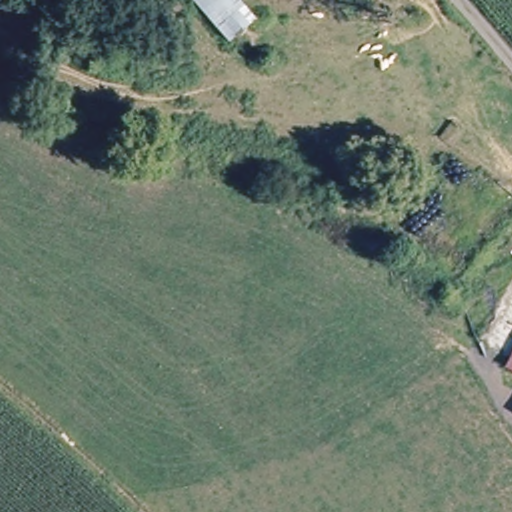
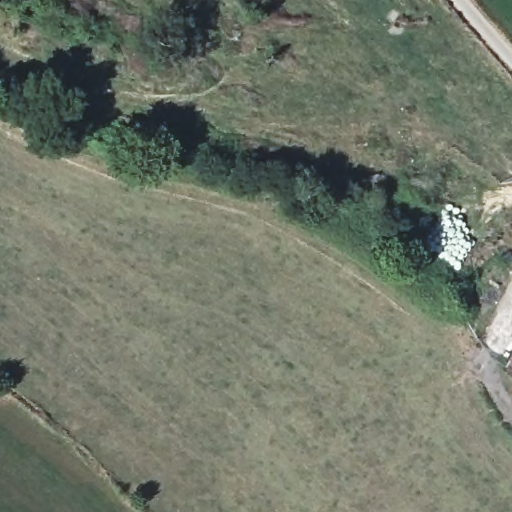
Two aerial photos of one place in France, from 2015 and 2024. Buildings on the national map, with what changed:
demolished [(227,40),(192,0),(243,0),(258,18),(227,40)]

